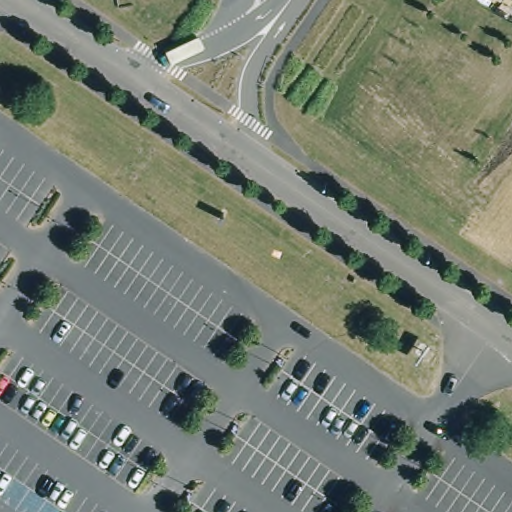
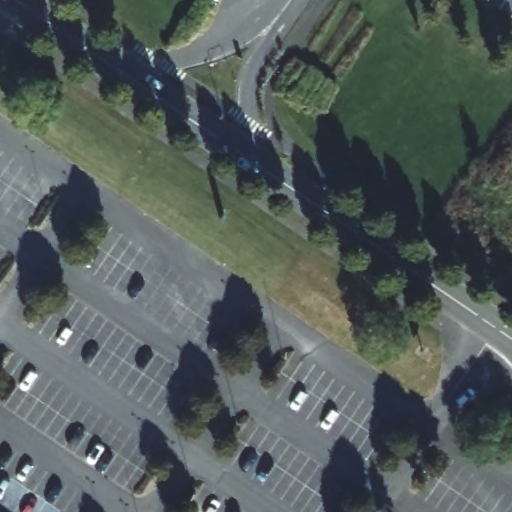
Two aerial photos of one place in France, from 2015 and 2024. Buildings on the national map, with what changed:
[]

